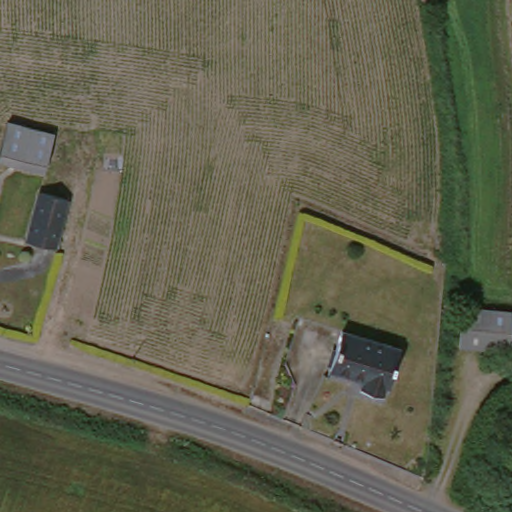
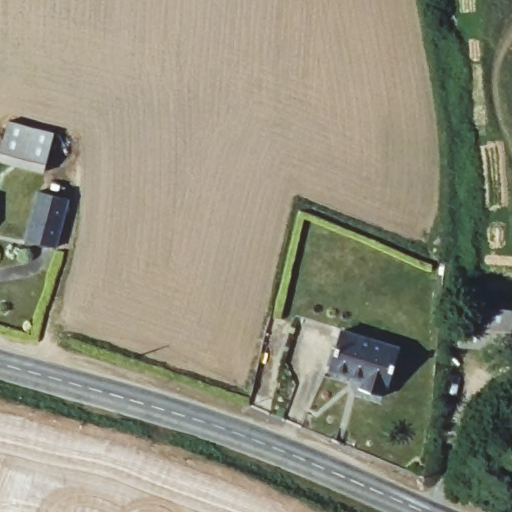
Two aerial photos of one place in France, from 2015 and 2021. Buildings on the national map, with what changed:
unchanged [(58,136),(46,172),(0,157),(0,138),(6,120),(58,136)]
unchanged [(68,196),(54,244),(26,236),(39,188),(68,196)]
unchanged [(512,323),(502,358),(450,341),(461,300),(512,316),(512,323)]
unchanged [(398,347),(381,400),(351,391),(353,383),(320,372),(337,327),(398,347)]

